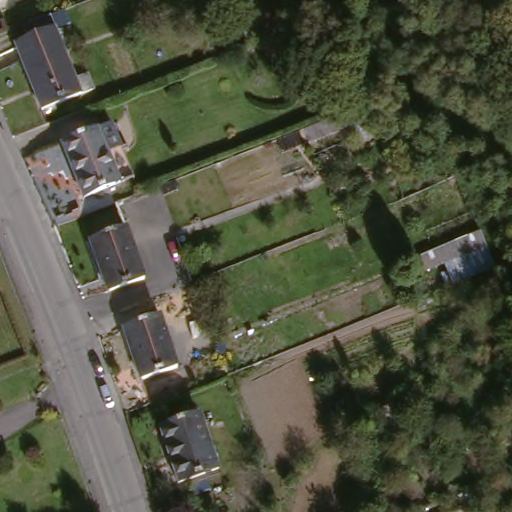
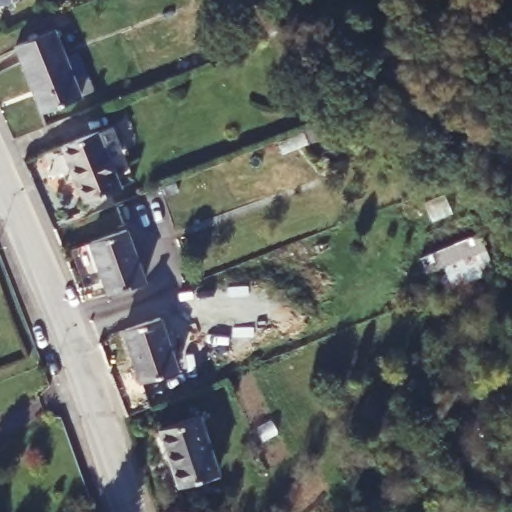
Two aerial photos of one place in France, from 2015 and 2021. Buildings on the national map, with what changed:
unchanged [(0,6),(0,0),(15,0),(0,6)]
unchanged [(18,52),(55,40),(77,105),(41,119),(18,52)]
unchanged [(387,124),(398,139),(337,158),(332,142),(387,124)]
unchanged [(63,149),(97,137),(113,132),(122,157),(106,162),(116,193),(82,204),(74,180),(63,149)]
unchanged [(472,197),(479,212),(423,229),(417,231),(411,215),(422,212),(472,197)]
unchanged [(91,246),(126,234),(145,285),(110,298),(91,246)]
unchanged [(474,237),(491,278),(444,296),(431,255),(474,237)]
unchanged [(124,337),(159,327),(175,375),(140,387),(124,337)]
unchanged [(164,436),(199,426),(214,476),(180,485),(164,436)]

